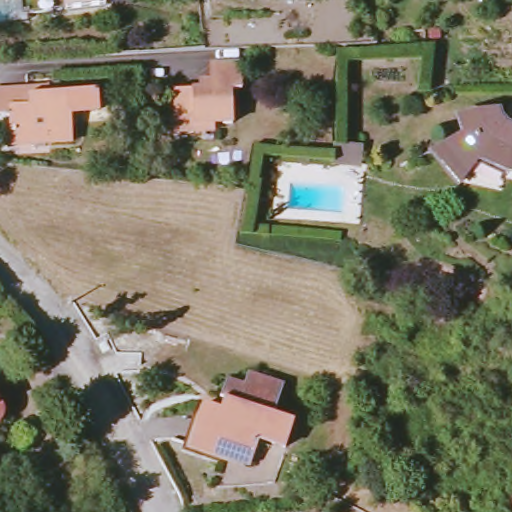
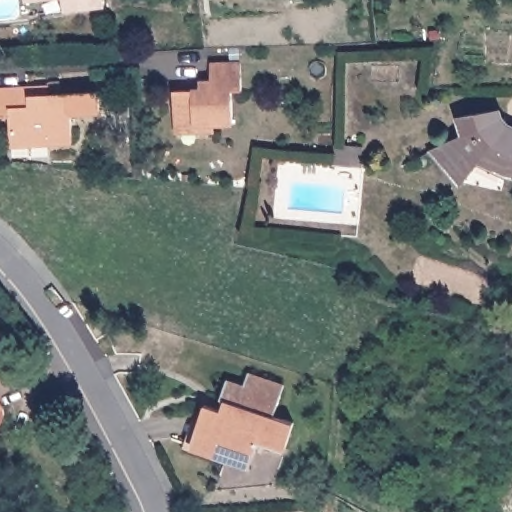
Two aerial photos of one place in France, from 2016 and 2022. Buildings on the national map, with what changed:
unchanged [(0,14),(0,0),(29,0),(30,3),(30,11),(0,14)]
unchanged [(29,0),(55,0),(30,3),(29,0)]
unchanged [(242,88),(232,89),(233,123),(215,123),(216,130),(177,131),(175,87),(199,87),(200,81),(206,80),(207,77),(213,78),(212,62),(242,61),(242,88)]
unchanged [(31,95),(99,95),(99,115),(72,115),(72,144),(10,145),(10,116),(0,116),(0,89),(28,88),(30,88),(31,95)]
unchanged [(508,167),(480,160),(464,180),(438,149),(466,132),(462,116),(487,111),(493,112),(497,115),(498,122),(503,127),(508,124),(512,127),(512,175),(506,173),(508,167)]
unchanged [(336,150),(364,151),(364,168),(336,167),(336,150)]
unchanged [(276,418),(296,425),(288,448),(263,440),(257,457),(234,449),(230,460),(206,451),(211,436),(199,431),(207,408),(220,411),(230,381),(247,388),(252,375),(288,387),(276,418)]
unchanged [(3,407),(3,408),(3,410),(3,412),(3,413),(2,415),(2,417),(1,419),(0,420),(0,401),(3,407)]

